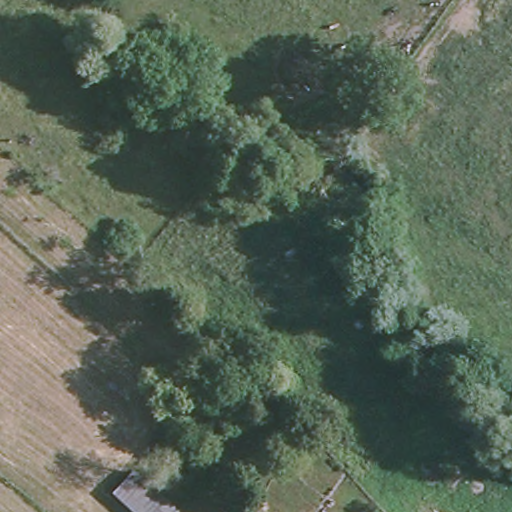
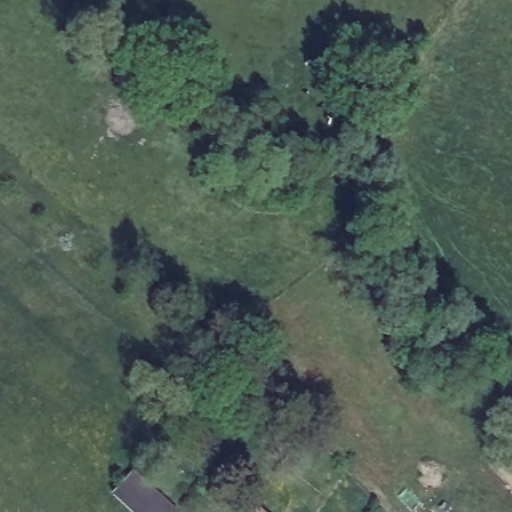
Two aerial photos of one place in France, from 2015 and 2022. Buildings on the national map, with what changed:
unchanged [(115,496),(136,472),(178,512),(132,512),(115,496)]
unchanged [(256,508),(261,512),(255,512),(256,508)]

